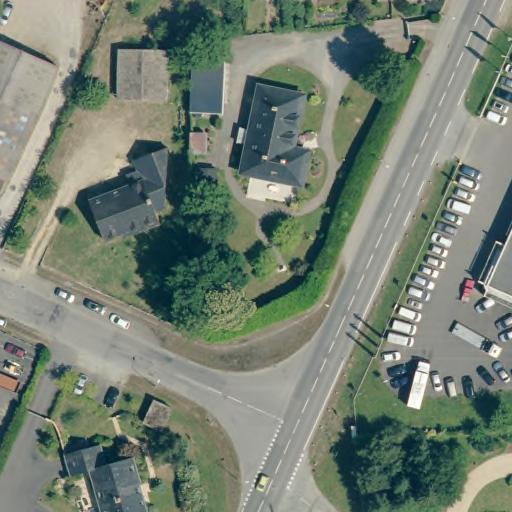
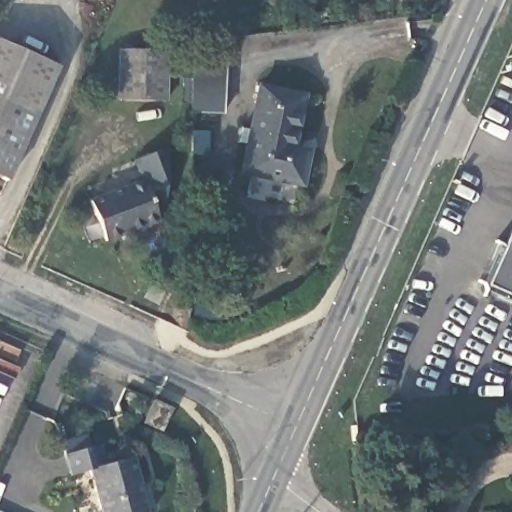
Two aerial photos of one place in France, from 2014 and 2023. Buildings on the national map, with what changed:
unchanged [(227,59),(208,58),(195,58),(194,44),(208,45),(228,46),(227,59)]
unchanged [(0,181),(0,46),(49,66),(0,181)]
unchanged [(162,101),(118,96),(120,48),(166,49),(162,101)]
unchanged [(220,64),(218,112),(209,112),(193,111),(194,64),(208,64),(220,64)]
unchanged [(300,96),(288,155),(303,159),(298,184),(237,172),(255,88),(300,96)]
unchanged [(165,212),(157,214),(159,224),(105,243),(92,201),(144,183),(139,164),(168,153),(165,212)]
unchanged [(479,297),(483,289),(482,279),(474,276),(496,237),(504,240),(512,223),(512,312),(479,297)]
unchanged [(174,409),(164,430),(146,420),(155,398),(174,409)]
unchanged [(101,443),(107,466),(137,457),(144,484),(141,484),(147,512),(101,512),(89,471),(71,477),(65,454),(101,443)]

